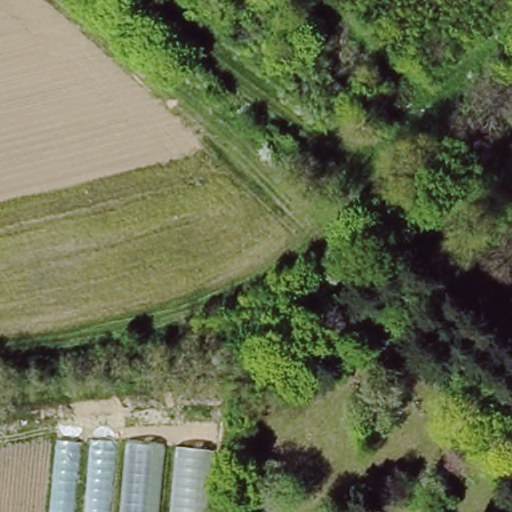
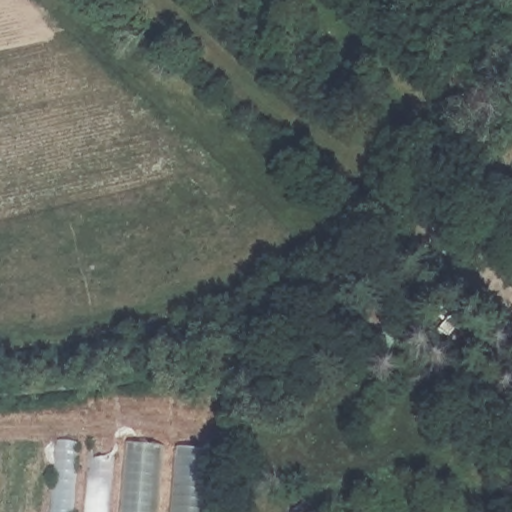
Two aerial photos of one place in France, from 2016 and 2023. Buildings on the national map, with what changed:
unchanged [(57,440),(91,445),(92,438),(213,450),(207,512),(50,512),(57,440)]

